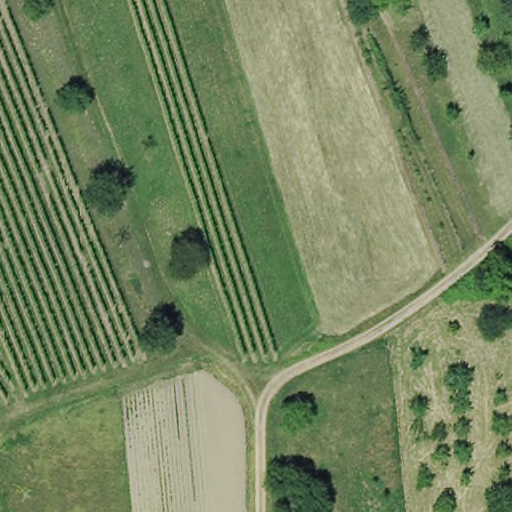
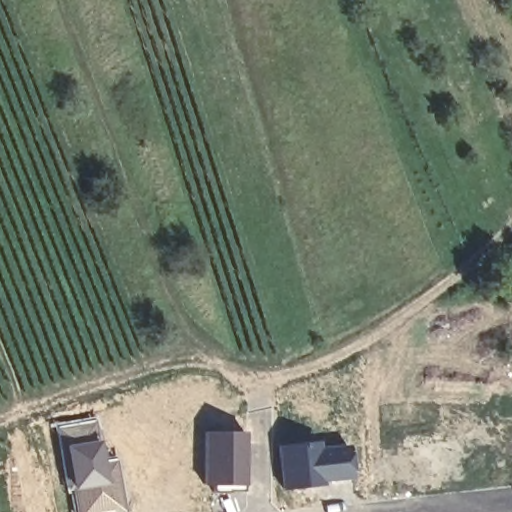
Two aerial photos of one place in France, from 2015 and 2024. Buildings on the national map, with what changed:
new [(105,459),(116,457),(126,512),(73,512),(53,423),(96,415),(105,459)]
new [(205,430),(245,431),(245,486),(205,486),(205,430)]
new [(322,439),(323,445),(347,443),(350,480),(282,489),(277,444),(322,439)]

